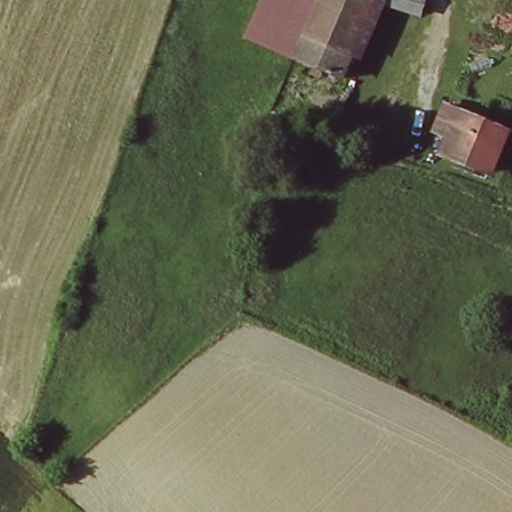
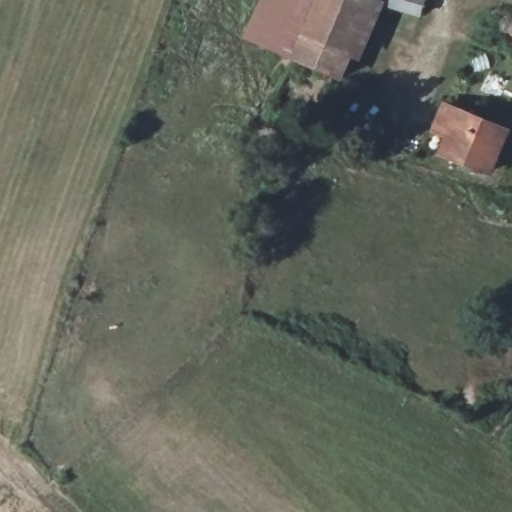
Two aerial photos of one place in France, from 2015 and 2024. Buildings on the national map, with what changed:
unchanged [(260,0),(312,0),(285,59),(242,40),(260,0)]
unchanged [(293,56),(308,23),(318,0),(376,0),(370,14),(354,47),(341,75),(307,61),(293,56)]
unchanged [(392,1),(389,0),(424,0),(421,13),(392,1)]
unchanged [(494,170),(453,158),(444,155),(449,141),(435,136),(445,109),(465,115),(510,128),(494,170)]

